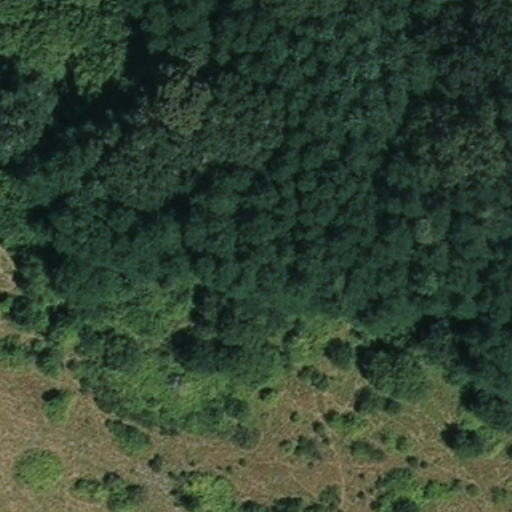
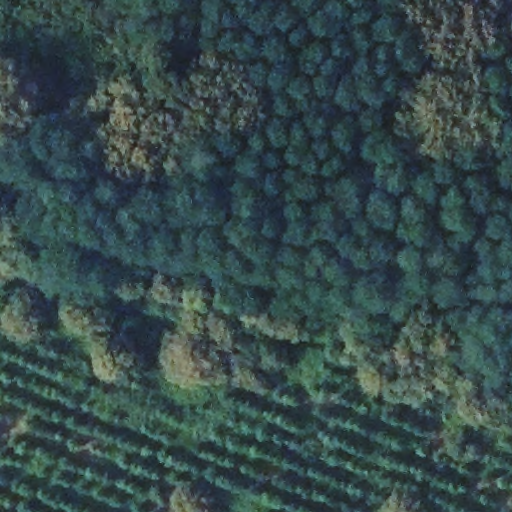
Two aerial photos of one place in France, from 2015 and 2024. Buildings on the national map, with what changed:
unchanged [(82,4),(70,0),(108,0),(101,23),(80,16),(82,4)]

